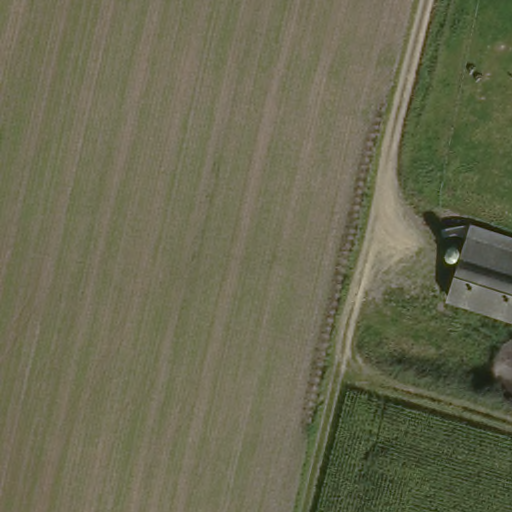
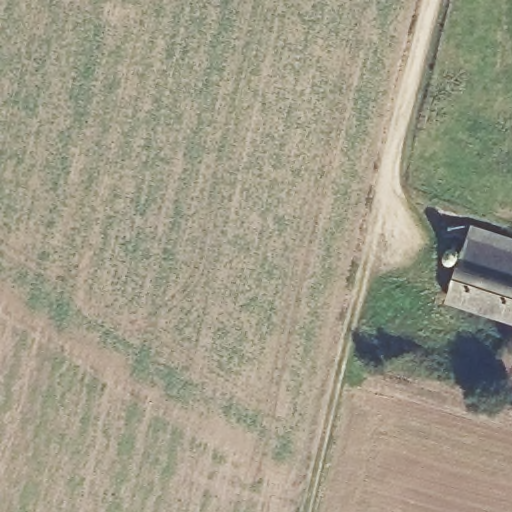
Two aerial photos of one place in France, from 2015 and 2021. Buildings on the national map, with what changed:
unchanged [(453,292),(476,228),(512,239),(512,311),(453,292)]

